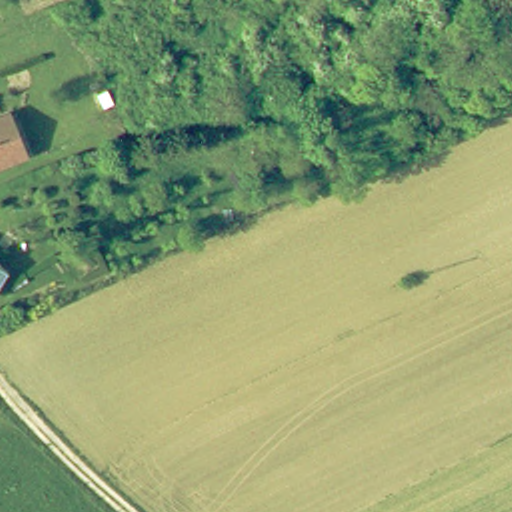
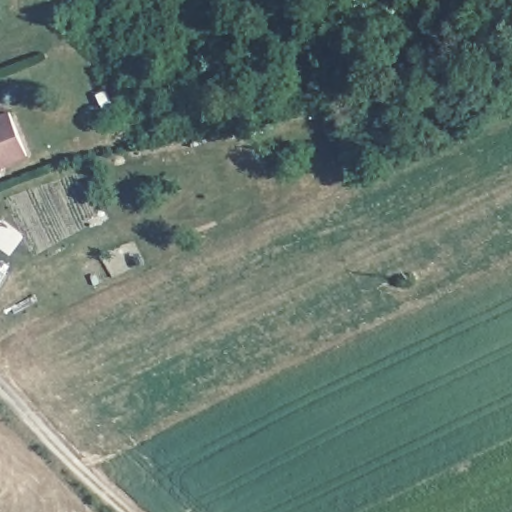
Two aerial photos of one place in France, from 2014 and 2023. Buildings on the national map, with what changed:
unchanged [(120,114),(110,119),(104,105),(114,100),(120,114)]
unchanged [(12,112),(29,156),(0,167),(0,117),(12,112)]
unchanged [(2,271),(0,275),(0,270),(2,271)]

